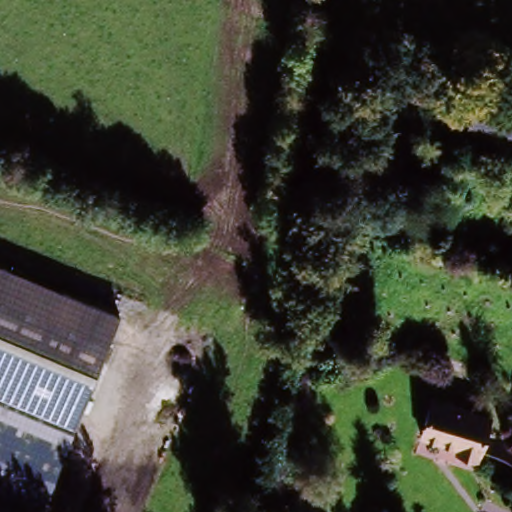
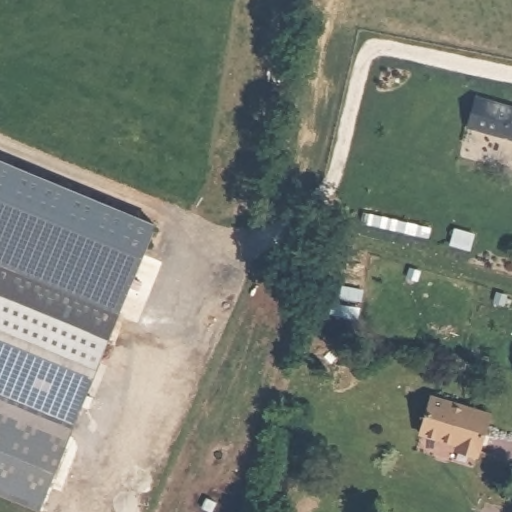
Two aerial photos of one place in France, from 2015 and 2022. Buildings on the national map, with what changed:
unchanged [(475,100),(512,113),(512,141),(467,125),(475,100)]
new [(133,286),(0,229),(0,157),(160,223),(133,286)]
new [(119,315),(0,265),(0,229),(131,285),(119,315)]
unchanged [(75,428),(0,396),(0,265),(121,316),(75,428)]
new [(41,512),(35,512),(0,498),(0,396),(75,428),(41,512)]
unchanged [(477,461),(455,455),(456,446),(421,443),(427,398),(491,417),(477,461)]

